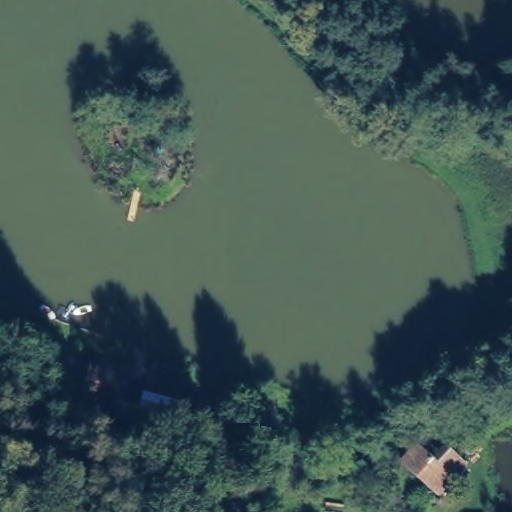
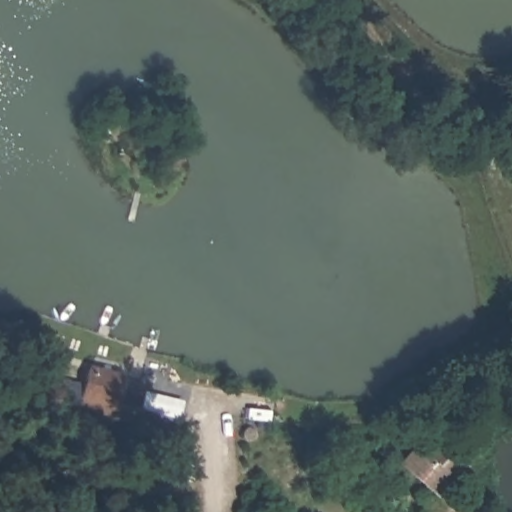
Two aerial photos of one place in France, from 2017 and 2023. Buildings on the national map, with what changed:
unchanged [(128,377),(119,410),(80,398),(91,364),(128,377)]
unchanged [(427,437),(438,451),(446,442),(469,466),(440,499),(399,464),(427,437)]

